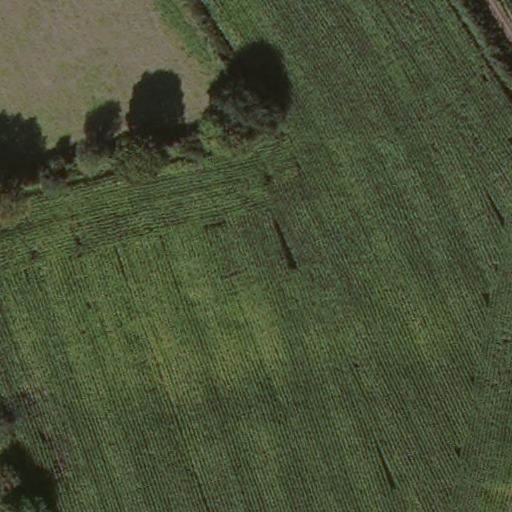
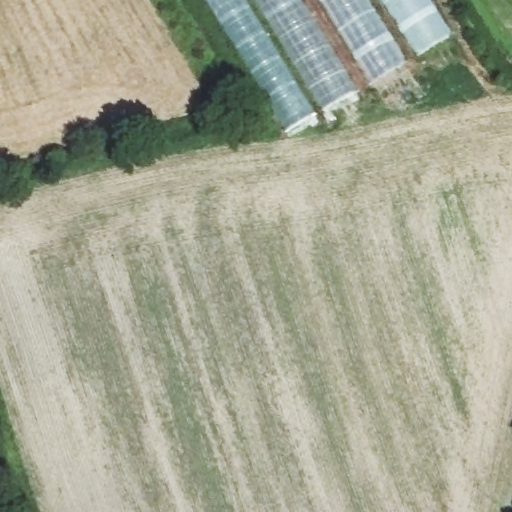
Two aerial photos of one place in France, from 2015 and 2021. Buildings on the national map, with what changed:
new [(256,70),(212,0),(243,0),(277,56),(256,70)]
new [(324,110),(258,0),(304,0),(359,91),(324,110)]
new [(371,80),(322,0),(370,0),(407,59),(371,80)]
new [(432,0),(452,34),(417,54),(384,0),(432,0)]

